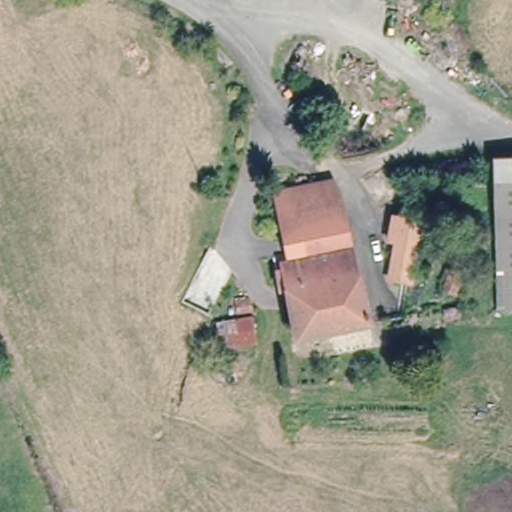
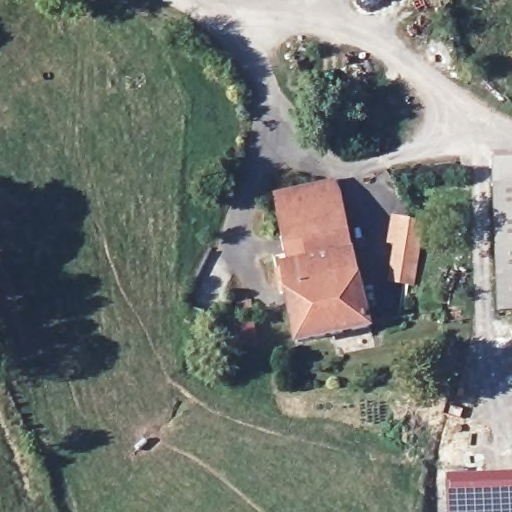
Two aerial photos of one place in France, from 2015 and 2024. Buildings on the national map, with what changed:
unchanged [(498,278),(493,178),(512,177),(512,278),(498,278)]
unchanged [(280,229),(274,195),(335,184),(343,218),(280,229)]
unchanged [(423,222),(420,233),(423,235),(415,272),(395,267),(399,245),(389,242),(395,216),(423,222)]
unchanged [(350,248),(286,259),(280,229),(343,218),(350,248)]
unchanged [(370,327),(297,341),(284,271),(278,272),(277,261),(286,259),(350,248),(370,327)]
new [(447,512),(447,479),(512,478),(512,512),(447,512)]

